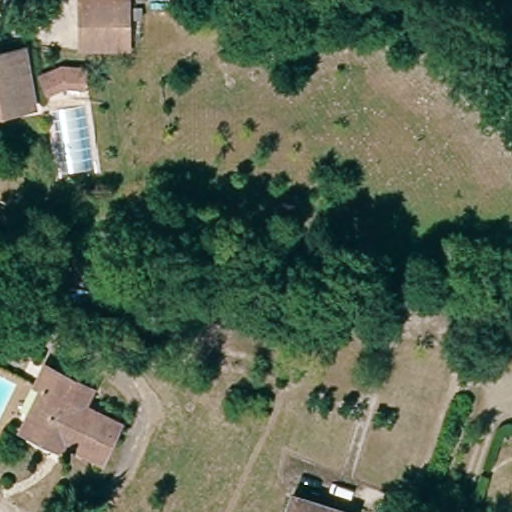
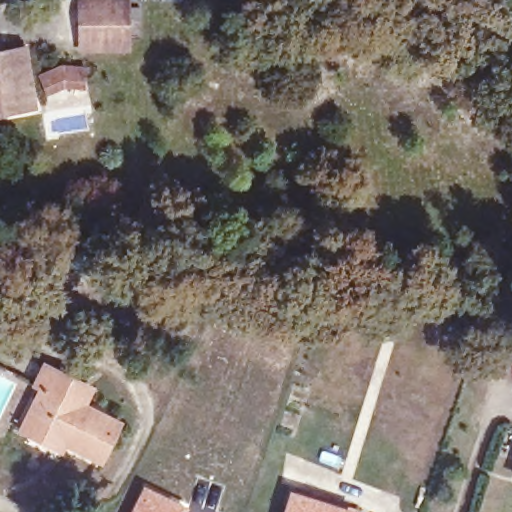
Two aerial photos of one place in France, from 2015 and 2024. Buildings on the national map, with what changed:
unchanged [(76,31),(77,0),(122,2),(122,32),(121,42),(76,40),(76,31)]
unchanged [(30,106),(9,110),(0,111),(0,47),(19,45),(30,106)]
unchanged [(107,458),(65,437),(60,446),(32,433),(16,425),(36,380),(33,378),(43,359),(77,376),(88,381),(81,398),(126,420),(107,458)]
unchanged [(261,410),(244,405),(247,395),(263,400),(261,410)]
new [(143,484),(188,506),(186,512),(129,512),(143,484)]
unchanged [(350,512),(284,512),(293,490),(350,511),(350,512)]

